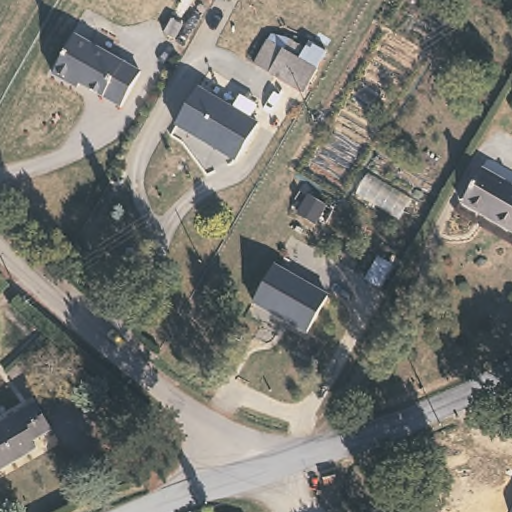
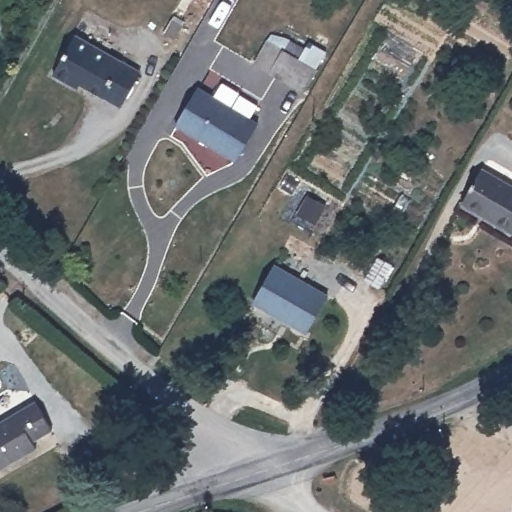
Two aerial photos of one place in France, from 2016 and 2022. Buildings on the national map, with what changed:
unchanged [(181,30),(172,43),(162,37),(168,24),(181,30)]
unchanged [(143,66),(123,100),(83,76),(69,78),(55,69),(79,28),(143,66)]
unchanged [(308,45),(303,54),(320,64),(306,87),(273,68),(258,60),(272,38),(280,43),(287,32),(308,45)]
unchanged [(258,107),(251,120),(255,124),(234,158),(174,127),(195,91),(232,111),(240,97),(258,107)]
unchanged [(512,183),(512,229),(462,200),(483,167),(512,183)]
unchanged [(273,268),(324,297),(302,333),(251,303),(273,268)]
unchanged [(33,403),(49,430),(31,439),(35,449),(0,467),(0,420),(33,403)]

